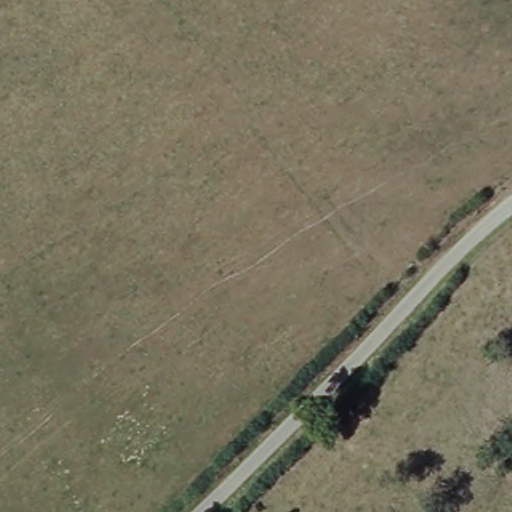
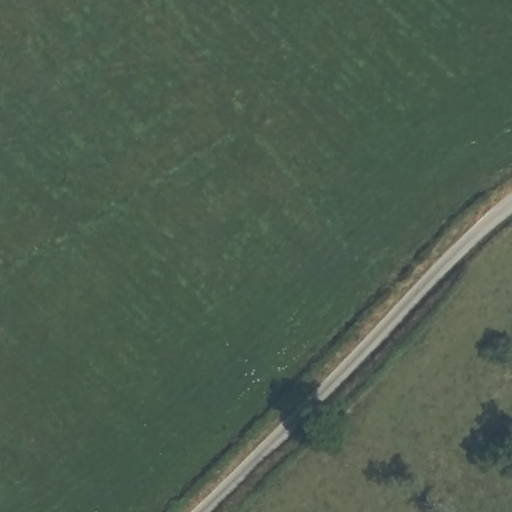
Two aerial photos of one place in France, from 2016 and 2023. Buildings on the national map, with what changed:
[]

